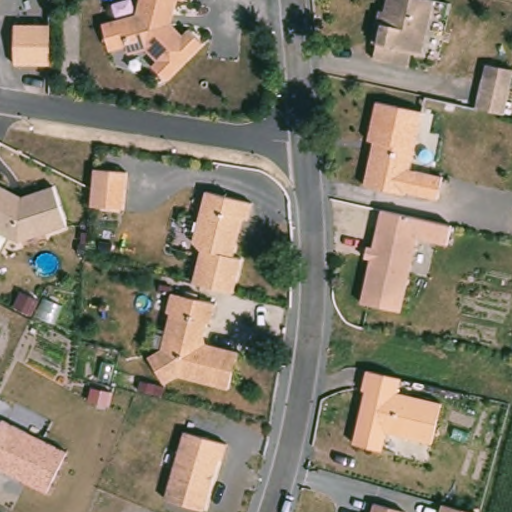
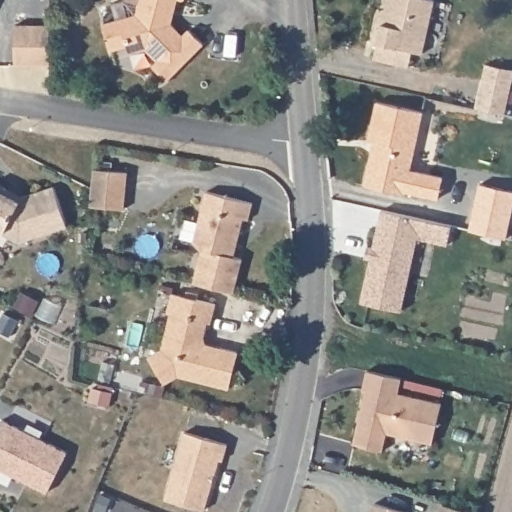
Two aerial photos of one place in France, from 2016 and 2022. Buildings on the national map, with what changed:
unchanged [(188,26),(194,20),(209,33),(176,72),(161,59),(166,53),(153,43),(150,44),(137,49),(134,42),(118,48),(107,23),(140,9),(142,0),(178,0),(175,15),(188,26)]
unchanged [(378,55),(381,40),(377,38),(381,19),(386,20),(390,0),(435,0),(425,50),(416,48),(413,63),(396,59),(378,55)]
unchanged [(50,66),(12,66),(12,24),(49,24),(50,66)]
unchanged [(484,60),(511,66),(503,110),(476,104),(484,60)]
unchanged [(377,97),(423,108),(410,165),(443,173),(438,194),(405,187),(404,190),(364,180),(374,137),(368,135),(377,97)]
unchanged [(125,210),(88,208),(91,169),(127,171),(125,210)]
new [(512,190),(512,213),(506,237),(470,229),(480,183),(512,190)]
unchanged [(66,227),(20,244),(0,234),(0,188),(21,198),(53,187),(66,227)]
unchanged [(247,218),(242,217),(233,255),(241,257),(233,291),(193,282),(201,249),(192,241),(204,190),(251,201),(247,218)]
unchanged [(381,209),(429,220),(424,239),(417,237),(400,310),(360,301),(381,209)]
unchanged [(146,352),(159,344),(168,308),(164,307),(166,297),(169,288),(213,298),(210,312),(208,317),(205,317),(200,337),(236,346),(228,382),(176,370),(162,378),(146,352)]
unchanged [(398,379),(396,394),(442,407),(434,443),(388,432),(382,453),(353,447),(363,396),(359,394),(364,370),(398,379)]
unchanged [(46,495),(0,474),(0,422),(66,452),(46,495)]
unchanged [(164,491),(189,426),(226,440),(220,456),(217,454),(199,504),(164,491)]
unchanged [(374,501),(406,510),(405,512),(371,512),(374,501)]
unchanged [(467,512),(439,512),(441,505),(467,512)]

